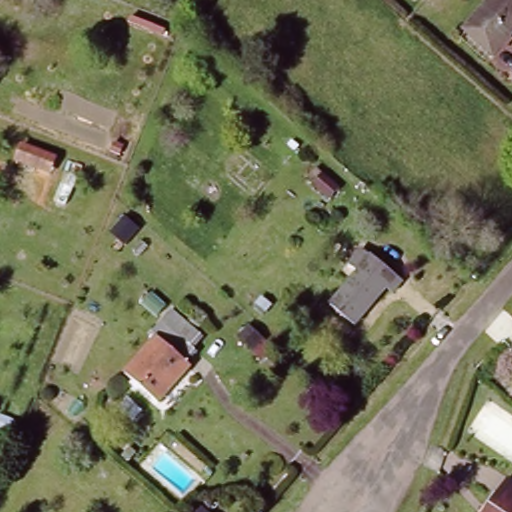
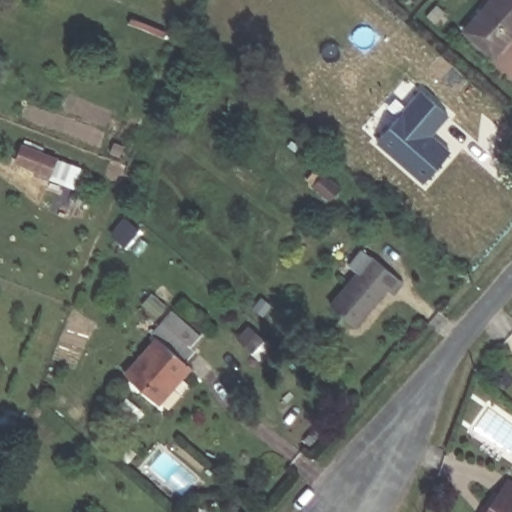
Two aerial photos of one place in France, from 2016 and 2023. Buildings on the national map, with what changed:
unchanged [(460,35),(491,0),(512,0),(512,35),(489,61),(460,35)]
new [(422,91),(448,115),(431,135),(450,152),(424,182),(377,142),(422,91)]
new [(23,150),(58,163),(52,180),(17,167),(23,150)]
unchanged [(352,326),(329,305),(372,257),(395,278),(402,285),(390,297),(385,291),(362,315),(352,326)]
unchanged [(183,358),(192,367),(161,403),(127,375),(160,337),(154,332),(163,322),(173,311),(188,324),(202,336),(183,358)]
unchanged [(512,480),(512,512),(487,512),(509,478),(512,480)]

